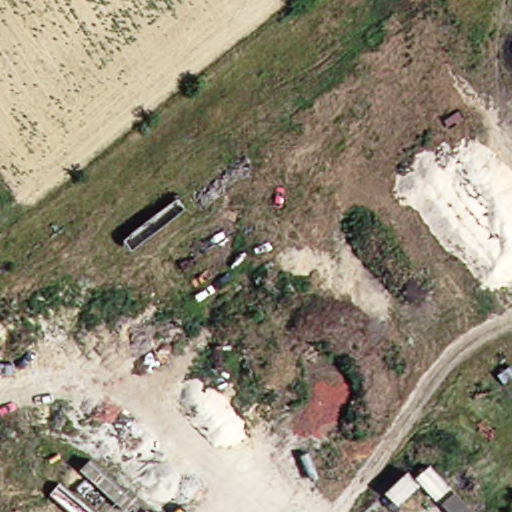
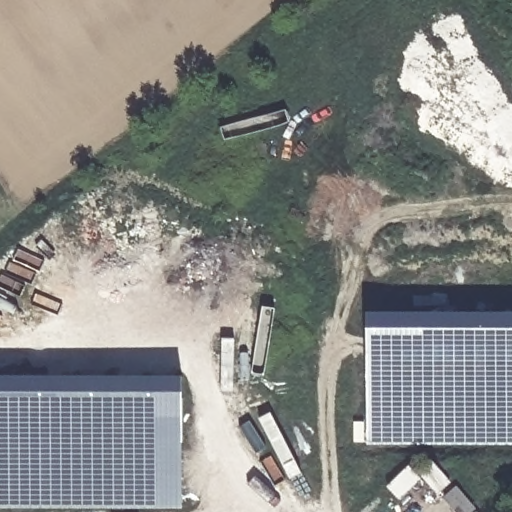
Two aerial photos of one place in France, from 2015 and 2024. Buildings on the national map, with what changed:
new [(366,445),(366,311),(512,312),(512,445),(366,445)]
new [(0,508),(0,376),(182,376),(183,508),(0,508)]
new [(456,488),(457,485),(479,508),(475,512),(461,512),(459,510),(458,512),(456,512),(424,479),(401,501),(388,487),(409,467),(418,476),(435,462),(456,488)]

